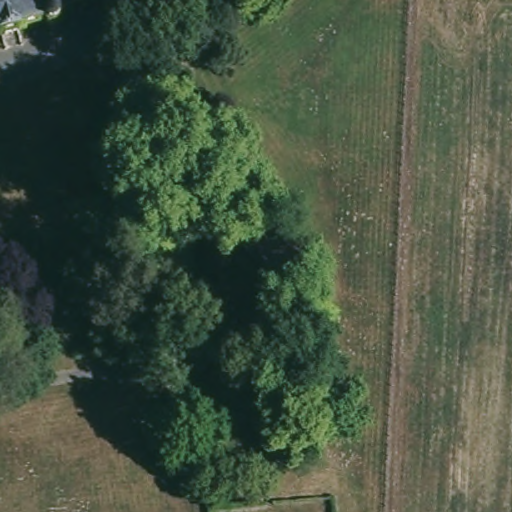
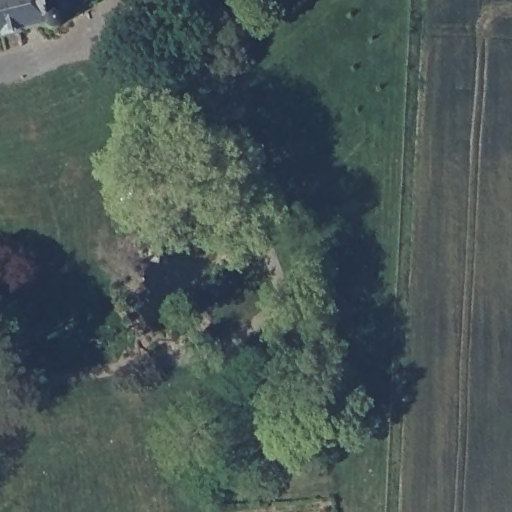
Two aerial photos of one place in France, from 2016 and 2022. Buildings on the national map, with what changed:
unchanged [(96,0),(96,1),(96,2),(95,3),(95,4),(94,4),(94,5),(93,6),(92,7),(92,8),(91,9),(90,9),(89,10),(88,10),(87,10),(87,11),(86,11),(72,14),(72,18),(64,19),(62,20),(64,25),(64,30),(62,34),(57,36),(51,36),(48,35),(44,29),(0,38),(0,0),(96,0)]

